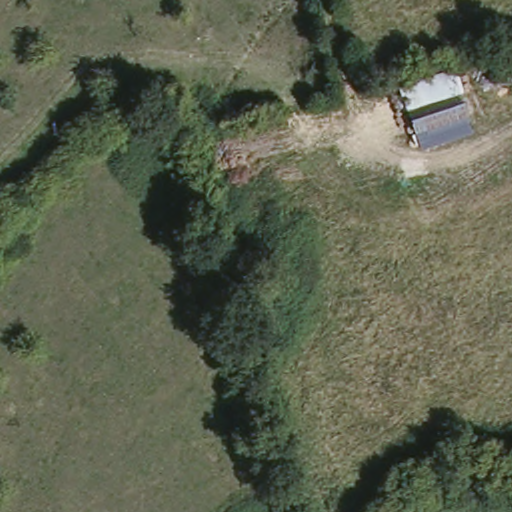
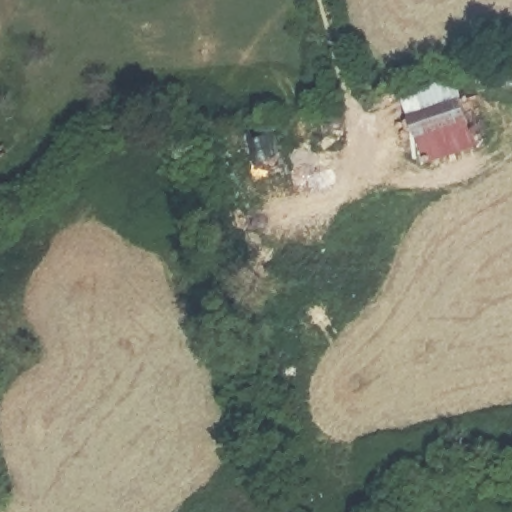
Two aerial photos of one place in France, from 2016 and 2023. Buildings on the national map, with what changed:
unchanged [(465,96),(462,98),(469,119),(466,119),(471,134),(420,153),(398,88),(455,68),(465,96)]

